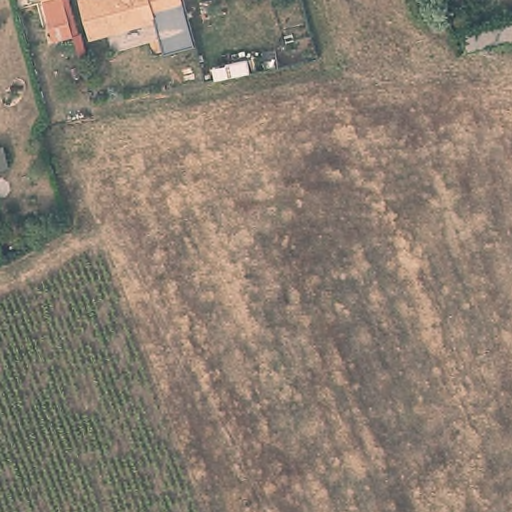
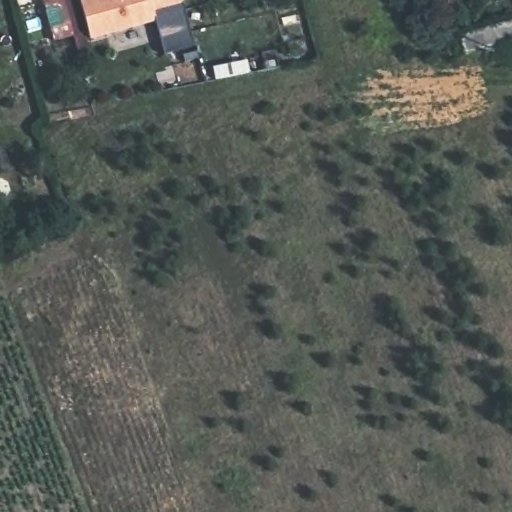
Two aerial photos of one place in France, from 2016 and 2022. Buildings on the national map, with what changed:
unchanged [(73,36),(53,42),(41,0),(63,0),(73,36)]
unchanged [(174,9),(159,14),(160,17),(94,35),(84,0),(172,0),(174,9)]
unchanged [(458,33),(512,17),(512,40),(465,53),(458,33)]

